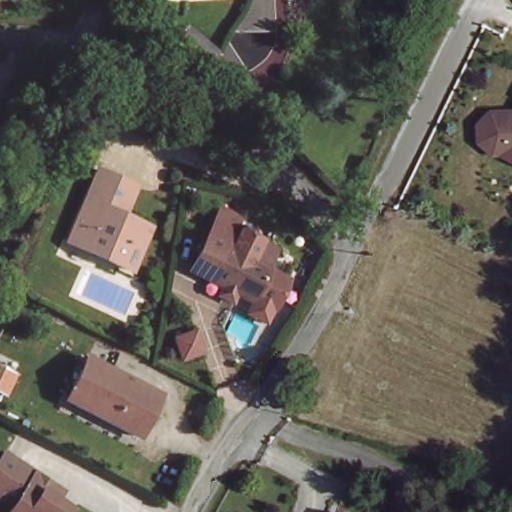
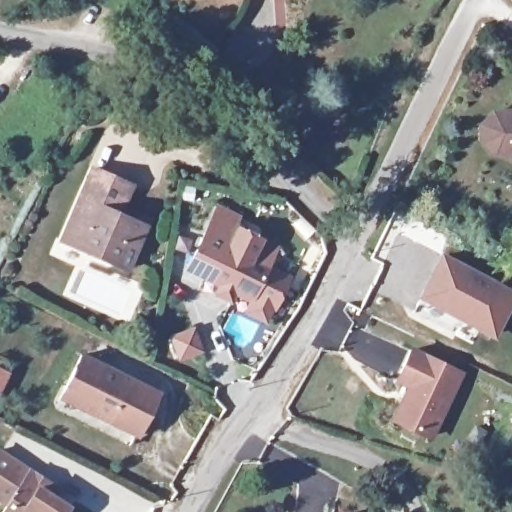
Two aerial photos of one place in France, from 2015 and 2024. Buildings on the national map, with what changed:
unchanged [(485,144),(479,127),(487,116),(512,115),(512,153),(505,154),(485,144)]
unchanged [(128,266),(62,238),(92,166),(119,177),(136,184),(123,212),(147,221),(128,266)]
unchanged [(270,262),(292,271),(280,305),(256,297),(189,272),(210,225),(217,207),(234,216),(227,232),(221,246),(270,262)]
new [(512,314),(498,340),(426,300),(447,261),(512,296),(512,314)]
new [(455,336),(417,315),(426,300),(463,321),(455,336)]
new [(420,393),(400,383),(415,354),(464,378),(432,441),(403,426),(420,393)]
unchanged [(159,398),(138,439),(62,400),(83,359),(159,398)]
unchanged [(52,499),(67,508),(65,512),(4,512),(7,507),(0,504),(0,455),(57,491),(52,499)]

